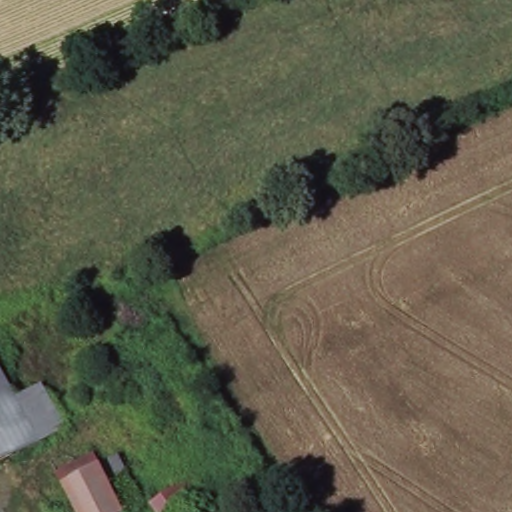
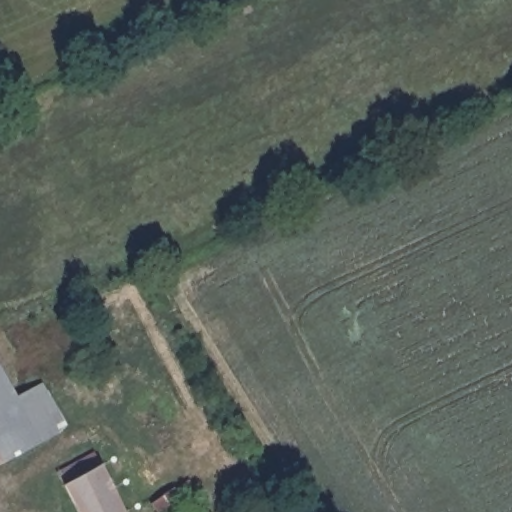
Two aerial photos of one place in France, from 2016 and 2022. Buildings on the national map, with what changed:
unchanged [(14,392),(42,379),(64,421),(58,429),(0,460),(0,366),(14,392)]
unchanged [(80,512),(57,467),(95,448),(103,460),(128,510),(123,512),(80,512)]
unchanged [(103,460),(118,451),(145,501),(128,510),(103,460)]
unchanged [(161,512),(152,497),(190,478),(200,497),(173,512),(161,512)]

